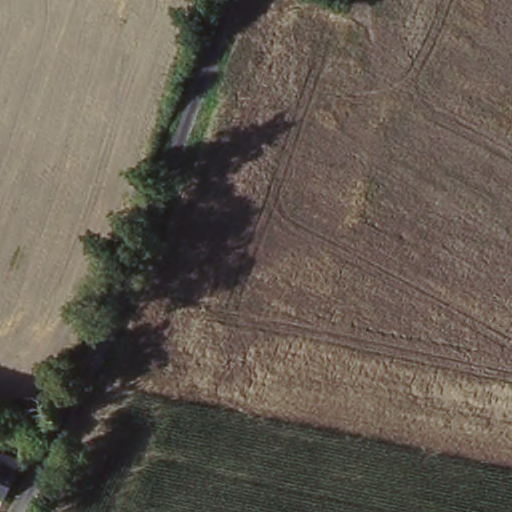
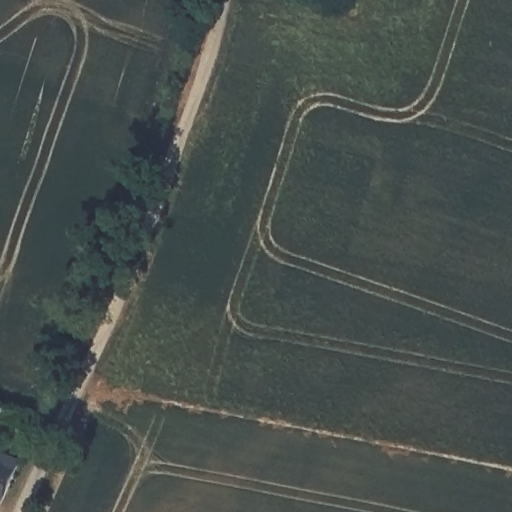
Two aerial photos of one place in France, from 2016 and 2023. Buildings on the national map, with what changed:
unchanged [(0,489),(0,453),(1,450),(21,456),(5,490),(0,489)]

